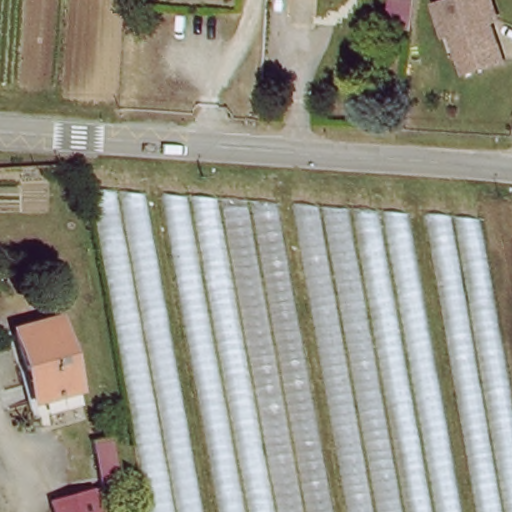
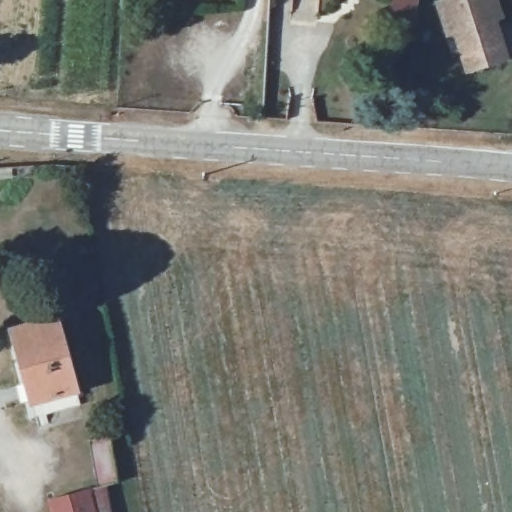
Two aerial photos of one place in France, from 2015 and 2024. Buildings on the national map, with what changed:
unchanged [(493,29),(501,59),(461,71),(453,36),(442,42),(432,2),(439,0),(492,0),(499,27),(493,29)]
demolished [(87,191),(469,221),(512,460),(512,512),(146,512),(87,191)]
unchanged [(13,327),(58,315),(83,399),(31,414),(27,397),(35,396),(13,327)]
unchanged [(53,500),(97,490),(87,445),(107,441),(116,478),(117,485),(105,487),(112,512),(56,512),(53,500)]

